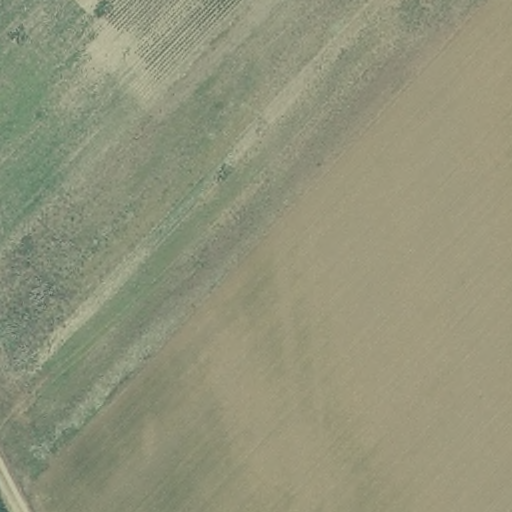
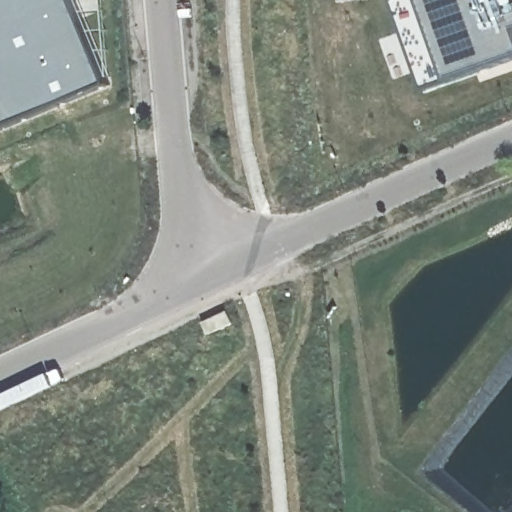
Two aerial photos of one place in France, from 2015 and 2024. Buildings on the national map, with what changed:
new [(0,131),(0,0),(76,0),(111,84),(0,131)]
new [(392,0),(512,0),(512,61),(425,91),(392,0)]
new [(229,312),(235,323),(211,334),(206,324),(229,312)]

